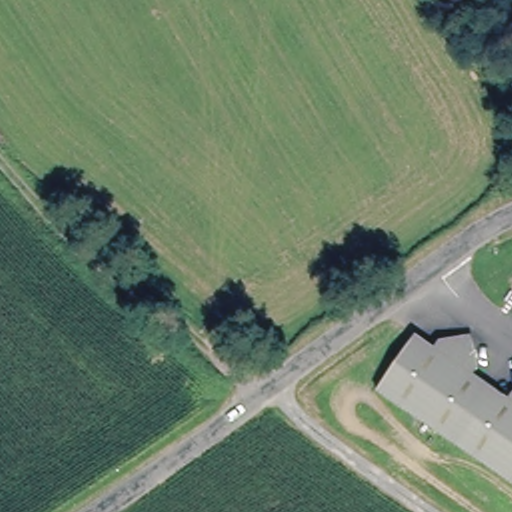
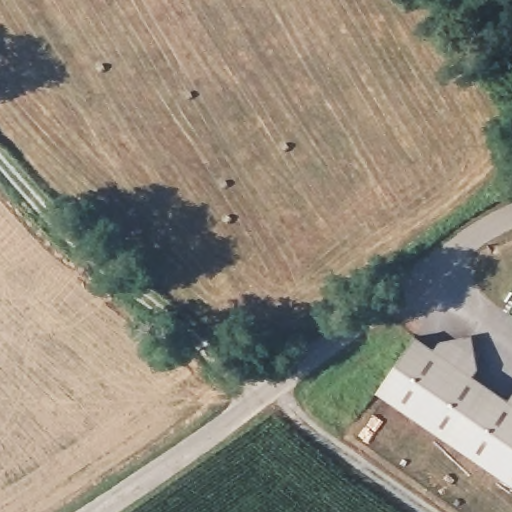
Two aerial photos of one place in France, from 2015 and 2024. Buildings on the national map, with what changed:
unchanged [(418,341),(435,354),(440,348),(453,346),(467,343),(478,341),(477,363),(479,374),(474,382),(507,406),(511,401),(512,401),(512,489),(380,393),(418,341)]

